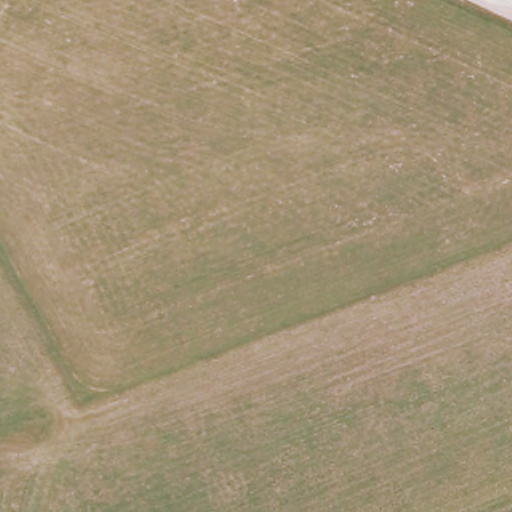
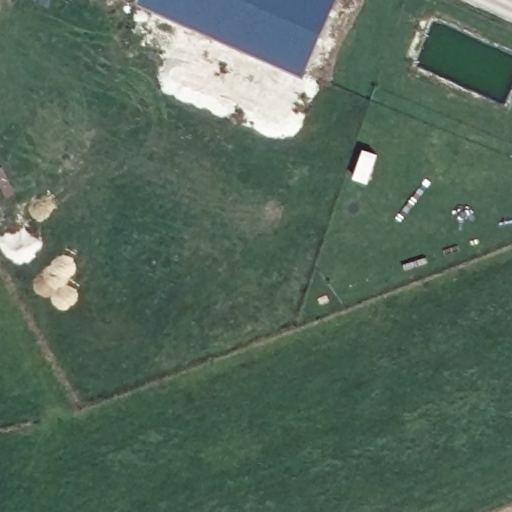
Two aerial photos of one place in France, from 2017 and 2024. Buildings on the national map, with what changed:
new [(338,0),(307,73),(140,0),(338,0)]

